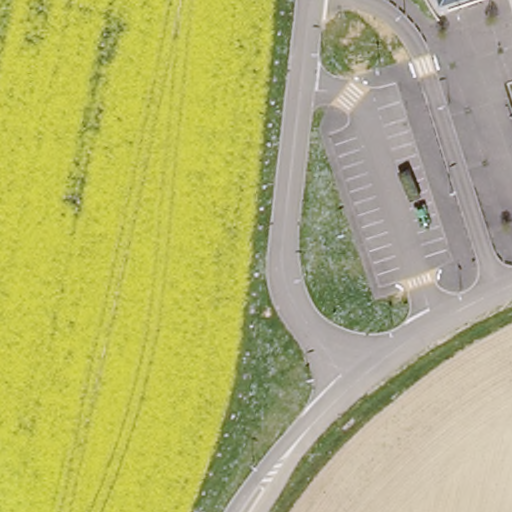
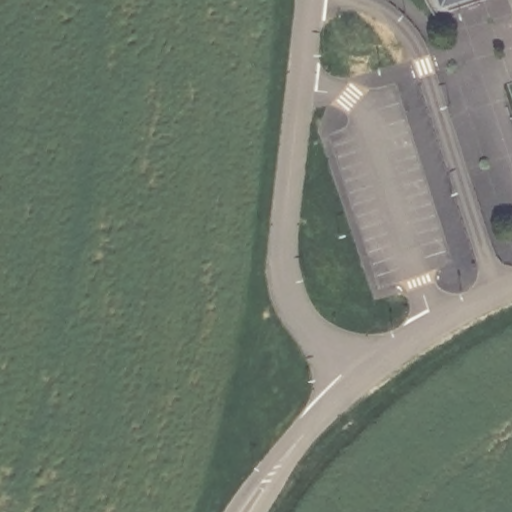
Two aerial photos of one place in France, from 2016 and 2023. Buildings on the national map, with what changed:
unchanged [(437,0),(461,0),(439,7),(437,0)]

